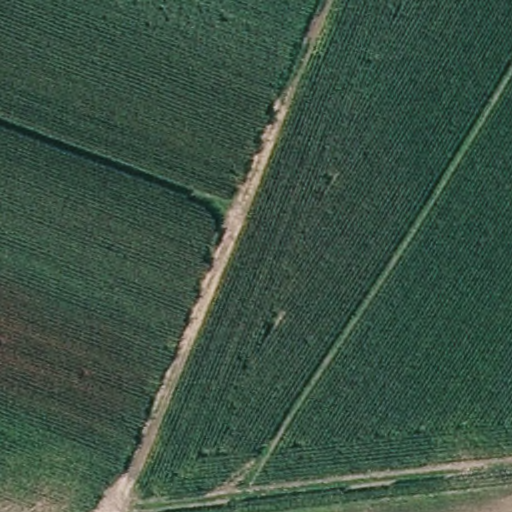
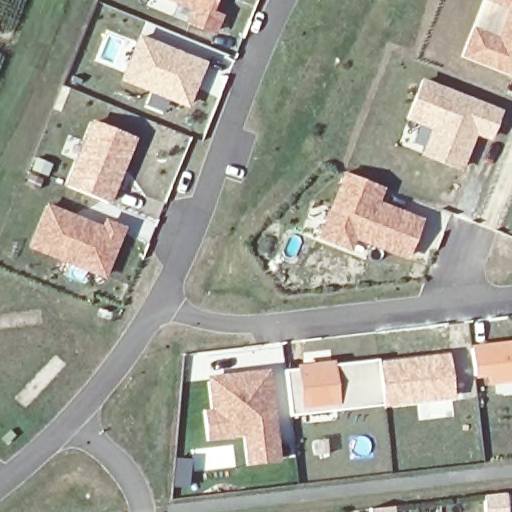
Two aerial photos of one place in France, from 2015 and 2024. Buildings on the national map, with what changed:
new [(224,14),(215,36),(184,23),(188,12),(159,0),(218,0),(214,9),(224,14)]
new [(494,32),(504,11),(482,0),(483,0),(512,0),(512,76),(461,55),(474,24),(494,32)]
new [(204,62),(187,106),(121,79),(138,34),(204,62)]
new [(499,111),(490,135),(475,130),(460,166),(398,144),(424,81),(499,111)]
new [(136,136),(110,203),(64,185),(91,119),(136,136)]
new [(386,187),(380,201),(424,218),(408,260),(356,240),(351,251),(317,238),(343,172),(386,187)]
new [(101,225),(105,218),(126,226),(104,279),(27,248),(46,203),(101,225)]
new [(487,376),(475,378),(471,344),(512,340),(512,382),(488,384),(487,376)]
new [(452,395),(384,405),(379,364),(447,356),(452,395)]
new [(297,369),(297,364),(334,360),(335,364),(378,358),(379,364),(384,405),(290,415),(286,370),(297,369)]
new [(270,368),(282,461),(246,466),(243,435),(207,440),(203,408),(210,407),(207,375),(270,368)]
new [(506,494),(507,512),(487,512),(486,496),(506,494)]

